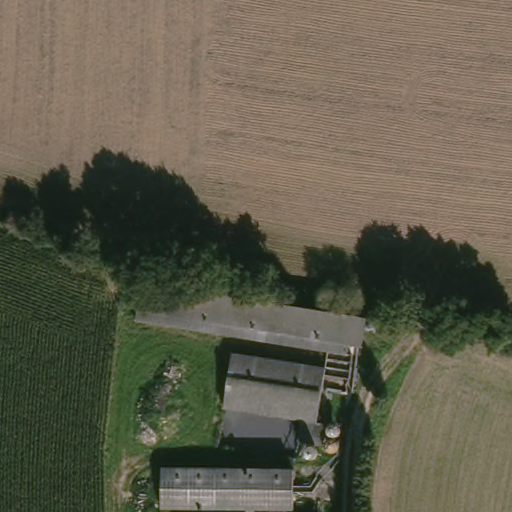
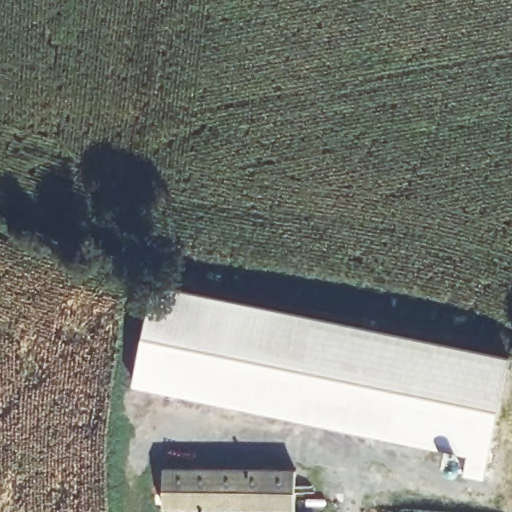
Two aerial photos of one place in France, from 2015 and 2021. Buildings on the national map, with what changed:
new [(141,284),(511,361),(487,479),(465,475),(470,453),(121,381),(141,284)]
demolished [(366,322),(364,352),(351,350),(348,358),(135,329),(141,290),(366,322)]
demolished [(325,370),(320,417),(229,405),(234,358),(325,370)]
unchanged [(328,423),(325,442),(302,439),(303,420),(328,423)]
unchanged [(292,470),(292,510),(252,510),(252,512),(242,512),(242,510),(174,509),(158,510),(157,470),(292,470)]

